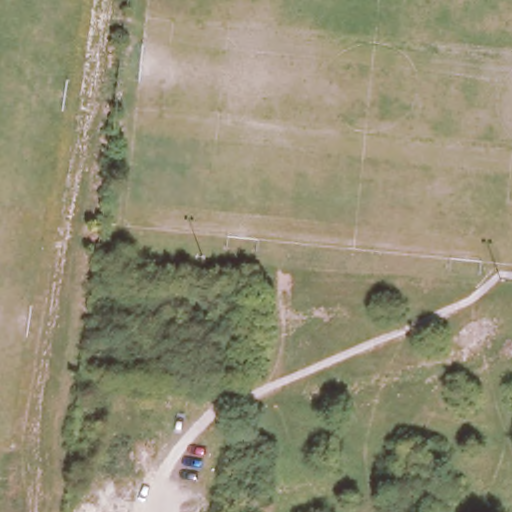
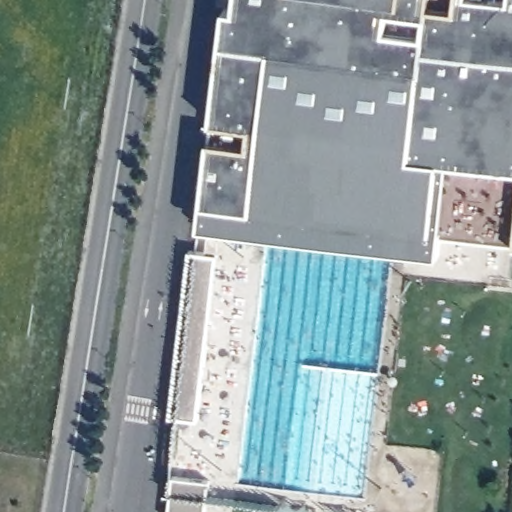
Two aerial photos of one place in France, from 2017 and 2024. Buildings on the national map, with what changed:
new [(442,250),(410,245),(412,223),(256,205),(254,227),(201,221),(227,2),(237,3),(237,0),(512,0),(512,239),(445,230),(442,250)]
new [(410,245),(254,227),(256,205),(412,223),(410,245)]
new [(193,416),(178,415),(196,254),(218,256),(208,345),(202,344),(193,416)]
new [(207,512),(170,512),(174,477),(210,481),(207,512)]

